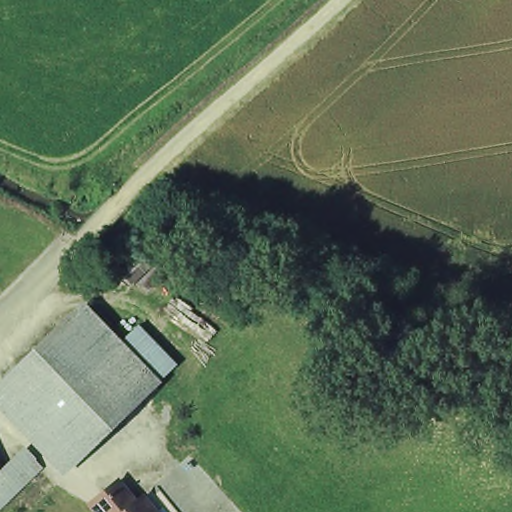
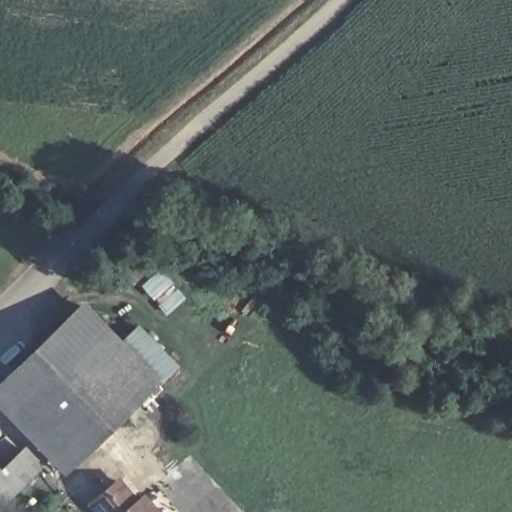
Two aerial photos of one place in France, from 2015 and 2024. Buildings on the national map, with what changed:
unchanged [(63,483),(44,462),(0,509),(0,467),(26,442),(0,411),(0,383),(83,297),(161,387),(63,483)]
unchanged [(86,505),(120,475),(140,496),(146,488),(165,512),(92,512),(86,505)]

